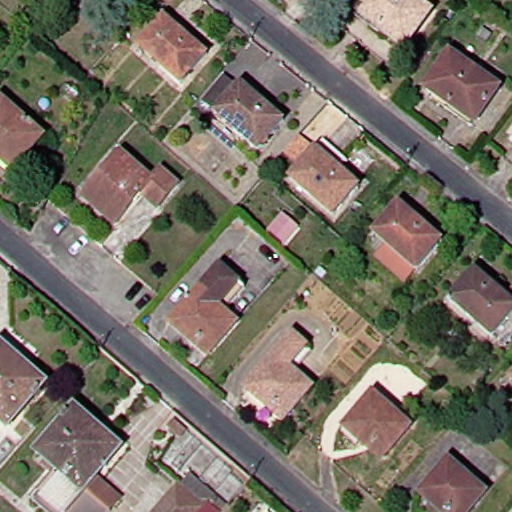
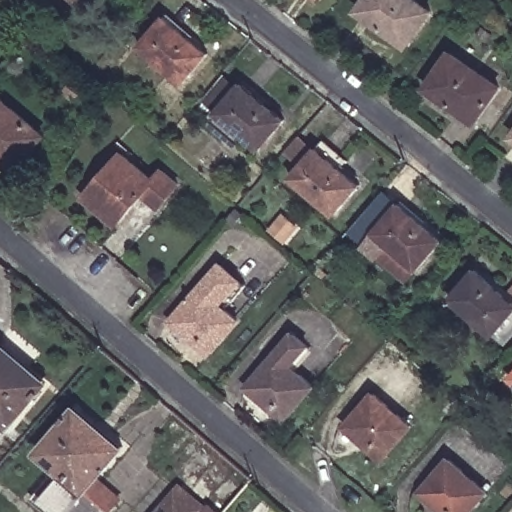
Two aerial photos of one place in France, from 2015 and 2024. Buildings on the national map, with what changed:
unchanged [(365,15),(370,8),(377,0),(424,0),(441,12),(416,46),(392,28),(389,32),(365,15)]
unchanged [(212,54),(187,84),(145,47),(170,17),(212,54)]
unchanged [(454,109),(457,105),(432,87),(457,54),(503,88),(481,119),(476,126),(454,109)]
unchanged [(285,121),(259,150),(217,113),(242,84),(285,121)]
unchanged [(19,169),(0,153),(0,106),(6,99),(48,135),(19,169)]
unchanged [(339,215),(296,178),(322,148),(329,141),(351,160),(345,168),(365,185),(339,215)]
unchanged [(159,181),(167,171),(184,184),(164,207),(148,194),(122,224),(90,197),(127,154),(159,181)]
unchanged [(382,257),(393,245),(379,233),(405,203),(447,240),(422,270),(412,282),(382,257)]
unchanged [(509,342),(500,334),(498,336),(455,299),(481,269),(512,296),(512,339),(509,342)]
unchanged [(239,285),(217,310),(237,326),(212,355),(175,323),(221,270),(239,285)]
unchanged [(312,346),(294,367),(317,387),(292,416),(255,384),(298,335),(312,346)]
unchanged [(0,351),(4,347),(49,387),(20,419),(14,427),(0,415),(0,351)]
unchanged [(349,423),(374,394),(410,426),(385,455),(349,423)]
unchanged [(101,478),(125,499),(114,512),(57,512),(42,499),(65,472),(62,470),(59,475),(48,466),(52,461),(44,454),(79,413),(124,452),(101,478)]
unchanged [(469,512),(452,512),(425,489),(450,460),(486,492),(469,512)]
unchanged [(187,485),(191,489),(195,484),(226,512),(194,512),(177,496),(187,485)]
unchanged [(194,512),(163,512),(177,496),(194,512)]

